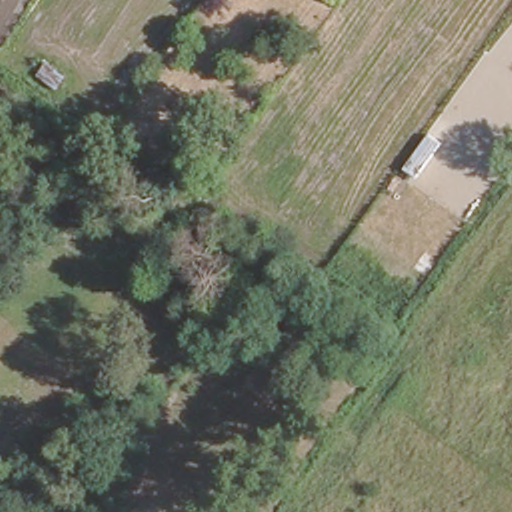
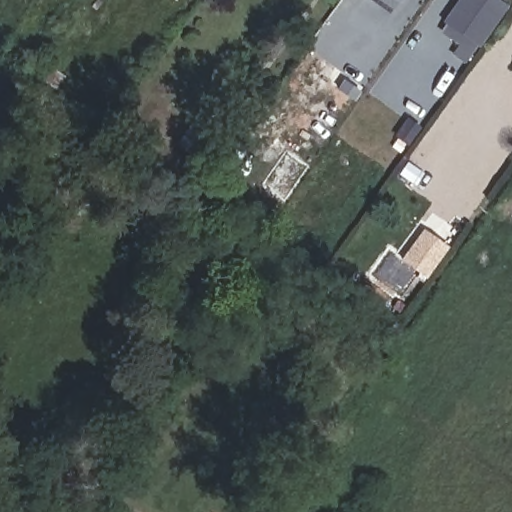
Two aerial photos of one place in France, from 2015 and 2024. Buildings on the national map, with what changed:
new [(399,2),(391,14),(372,0),(403,0),(400,3),(399,2)]
new [(454,55),(460,45),(442,33),(447,25),(443,22),(459,0),(499,0),(507,6),(466,64),(454,55)]
unchanged [(72,79),(60,97),(33,81),(44,63),(72,79)]
unchanged [(211,132),(195,154),(183,145),(200,121),(211,132)]
new [(426,280),(401,260),(425,230),(450,247),(426,280)]

